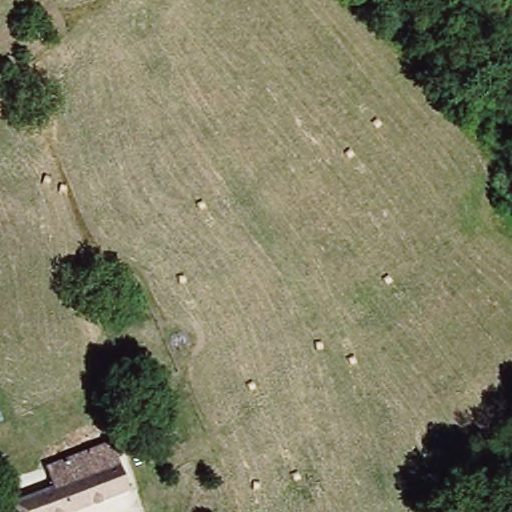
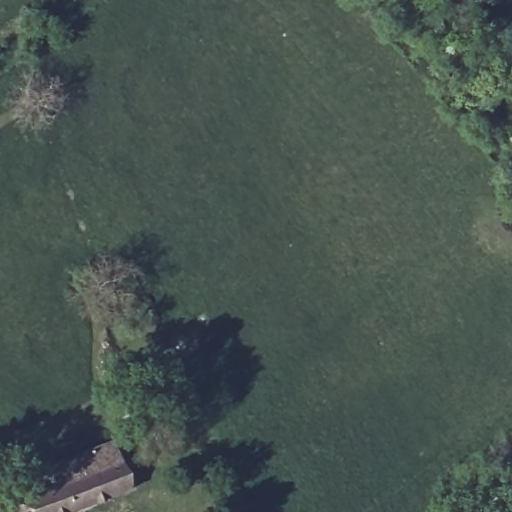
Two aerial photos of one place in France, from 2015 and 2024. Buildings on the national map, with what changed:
unchanged [(11,512),(8,502),(56,487),(49,465),(111,443),(130,492),(68,512),(11,512)]

